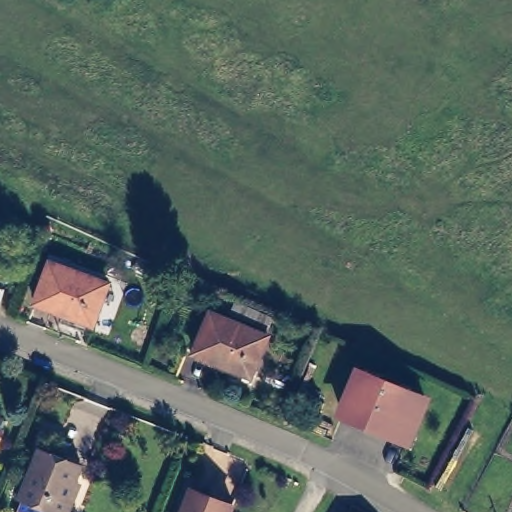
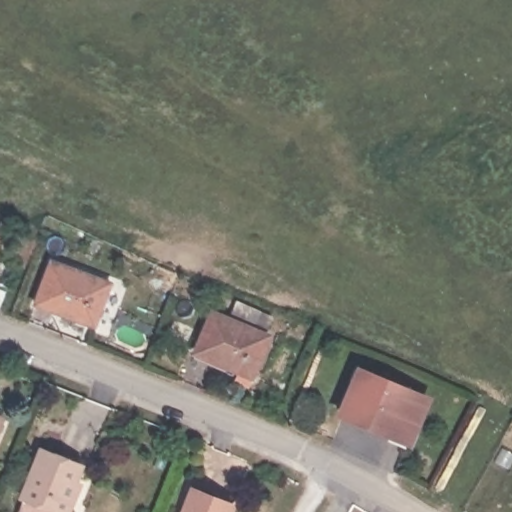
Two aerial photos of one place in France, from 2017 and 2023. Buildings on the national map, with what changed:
unchanged [(108,285),(92,326),(35,304),(51,263),(108,285)]
unchanged [(263,332),(246,372),(190,349),(207,309),(263,332)]
unchanged [(420,401),(403,442),(337,414),(354,373),(420,401)]
unchanged [(0,440),(0,418),(8,421),(0,440)]
unchanged [(67,512),(61,510),(61,512),(18,512),(25,496),(21,493),(33,466),(42,446),(82,462),(75,478),(81,481),(68,512),(67,512)]
unchanged [(234,506),(232,512),(185,512),(193,490),(234,506)]

